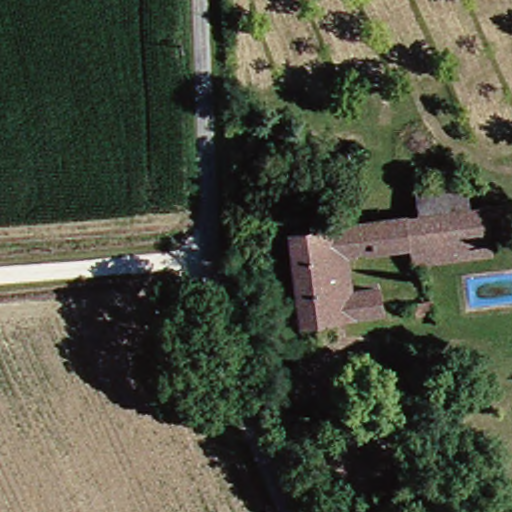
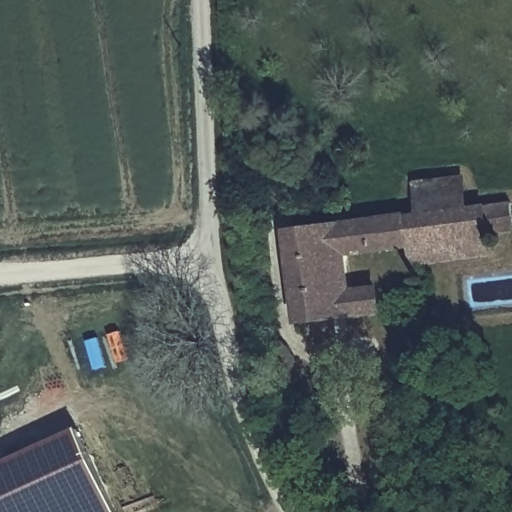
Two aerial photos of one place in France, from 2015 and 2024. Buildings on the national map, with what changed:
unchanged [(472,196),(473,212),(427,215),(427,197),(426,182),(471,180),(472,196)]
unchanged [(356,288),(382,286),(385,309),(306,315),(298,223),(347,220),(406,216),(427,215),(473,212),(495,211),(512,210),(512,235),(497,236),(497,258),(421,263),(418,241),(351,247),(356,288)]
unchanged [(445,316),(444,316),(427,320),(426,311),(426,310),(442,307),(445,316)]
new [(0,512),(0,464),(79,427),(117,512),(0,512)]

